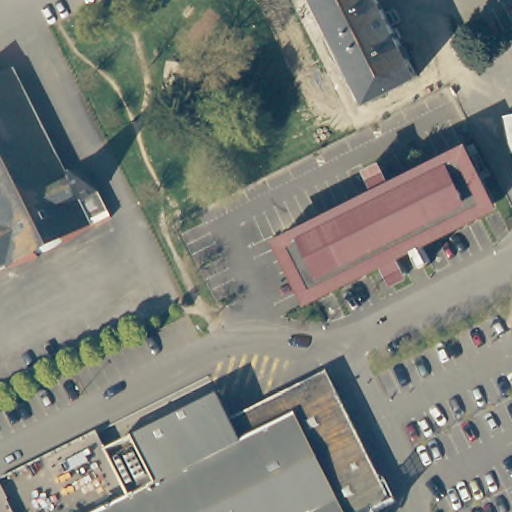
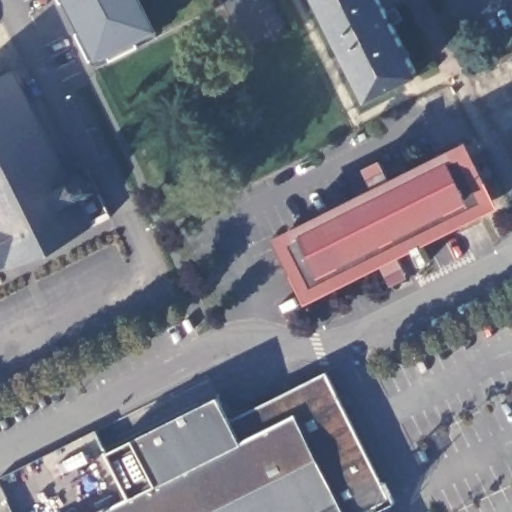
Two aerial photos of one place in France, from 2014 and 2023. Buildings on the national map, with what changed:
new [(95,63),(64,0),(143,0),(160,31),(95,63)]
unchanged [(338,35),(321,0),(382,0),(387,11),(338,35)]
unchanged [(418,72),(370,97),(338,35),(387,11),(418,72)]
demolished [(124,30),(116,34),(121,42),(89,59),(81,41),(97,33),(95,29),(118,17),(124,30)]
unchanged [(82,170),(107,217),(87,226),(89,232),(64,247),(62,244),(52,250),(44,254),(40,254),(35,256),(37,259),(8,272),(6,268),(0,271),(0,82),(15,75),(66,179),(82,170)]
unchanged [(399,281),(390,265),(317,302),(287,245),(386,194),(378,179),(393,171),(401,187),(473,150),(502,207),(406,257),(413,272),(399,281)]
unchanged [(387,504),(371,512),(115,512),(126,507),(103,459),(215,404),(227,427),(323,379),(326,383),(387,504)]
unchanged [(108,512),(98,512),(106,507),(108,512)]

